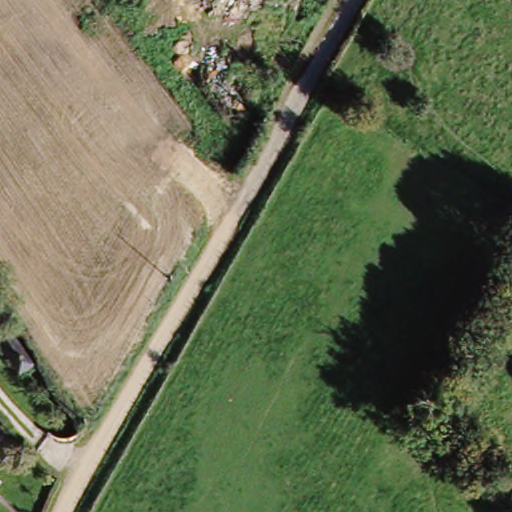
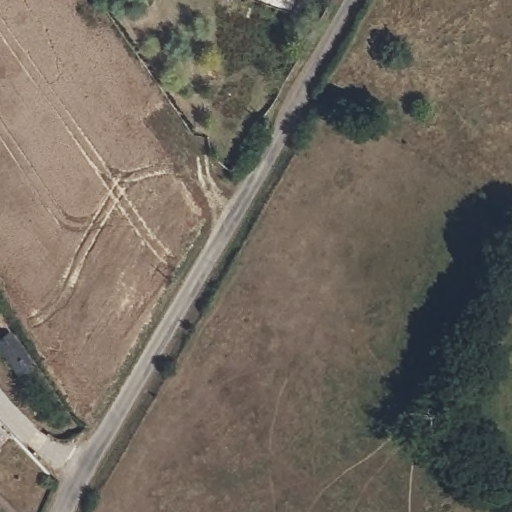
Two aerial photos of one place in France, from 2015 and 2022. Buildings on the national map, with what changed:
unchanged [(20,378),(5,387),(0,380),(0,349),(20,378)]

